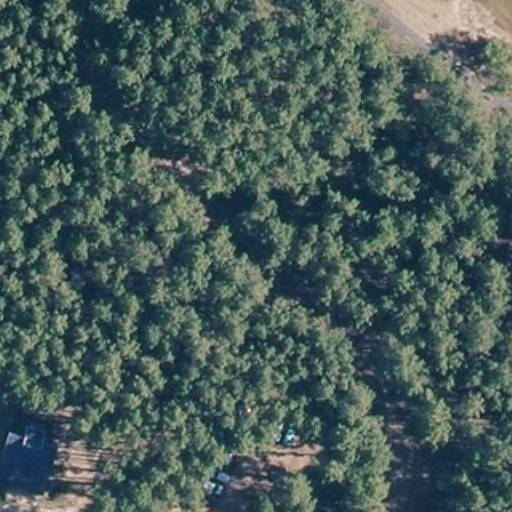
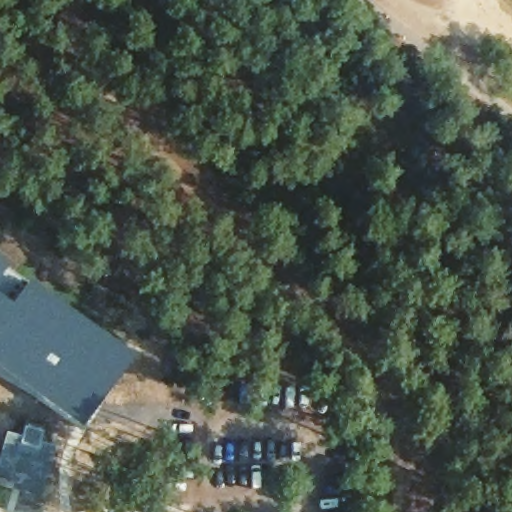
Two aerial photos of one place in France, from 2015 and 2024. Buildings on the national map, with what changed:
new [(0,368),(0,258),(8,264),(29,278),(134,356),(82,428),(0,368)]
unchanged [(0,487),(0,440),(2,432),(17,435),(20,423),(38,427),(36,439),(53,444),(40,497),(0,487)]

